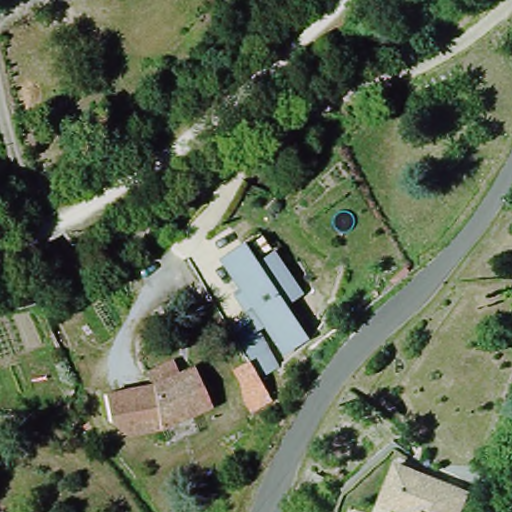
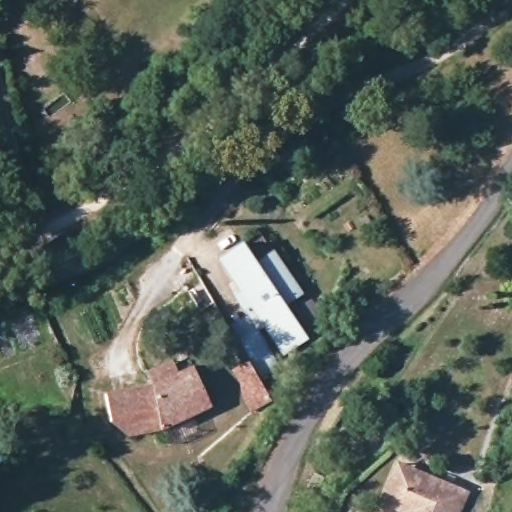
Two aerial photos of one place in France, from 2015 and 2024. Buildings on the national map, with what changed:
unchanged [(243,240),(260,258),(278,243),(305,289),(288,301),(312,337),(287,351),(266,324),(262,331),(283,364),(267,374),(230,324),(248,311),(236,295),(242,287),(222,259),(243,240)]
unchanged [(155,381),(182,373),(186,386),(201,381),(213,423),(192,429),(160,438),(116,427),(105,409),(111,382),(158,394),(155,381)]
unchanged [(397,461),(471,493),(465,512),(397,512),(379,505),(397,461)]

